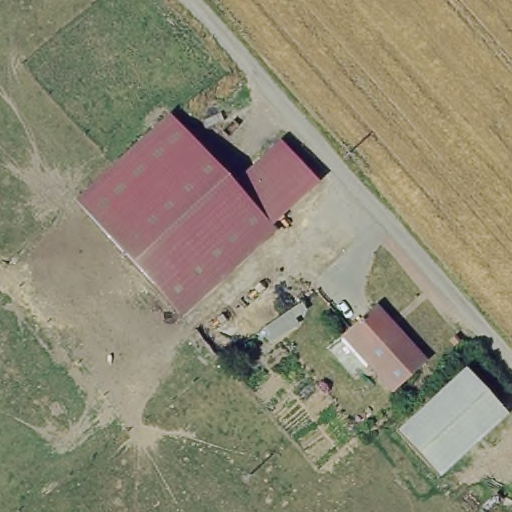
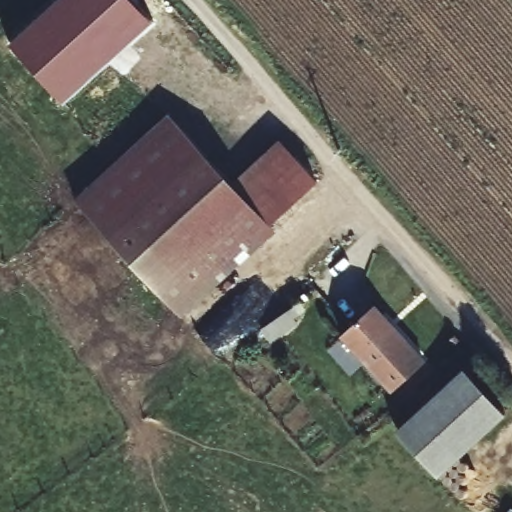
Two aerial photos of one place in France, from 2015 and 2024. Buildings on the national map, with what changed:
new [(65,101),(12,43),(58,0),(137,0),(155,20),(65,101)]
unchanged [(272,229),(179,312),(78,200),(171,116),(237,190),(272,229)]
unchanged [(283,147),(318,186),(272,229),(237,190),(283,147)]
unchanged [(377,311),(425,370),(393,396),(345,337),(377,311)]
unchanged [(391,432),(460,367),(505,413),(442,475),(391,432)]

